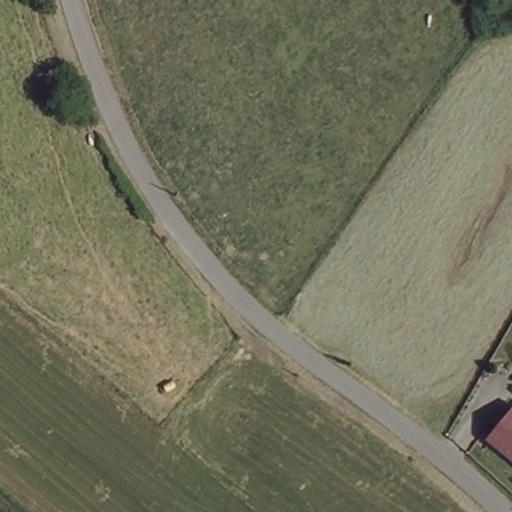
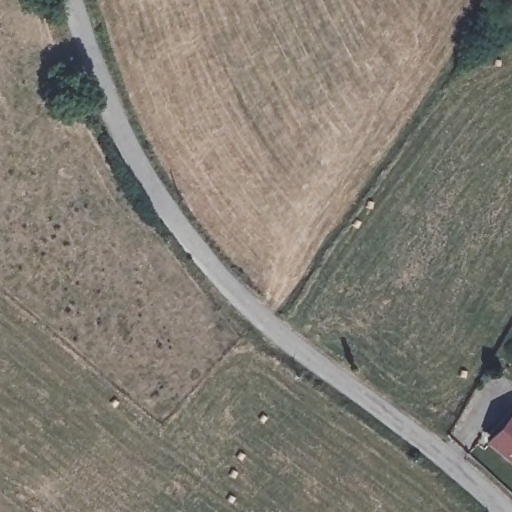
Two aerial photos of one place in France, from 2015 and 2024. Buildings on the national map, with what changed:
unchanged [(493,440),(511,415),(512,416),(512,456),(493,440)]

